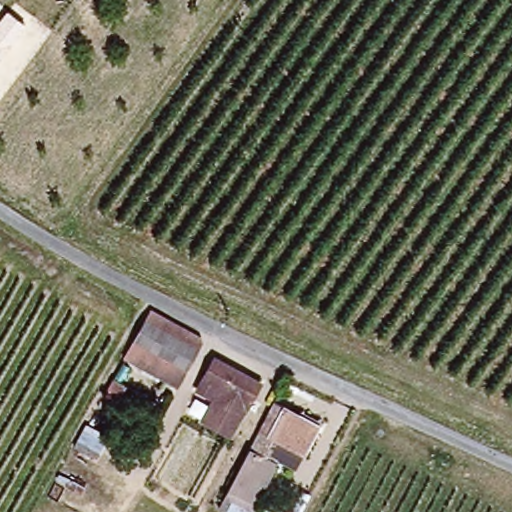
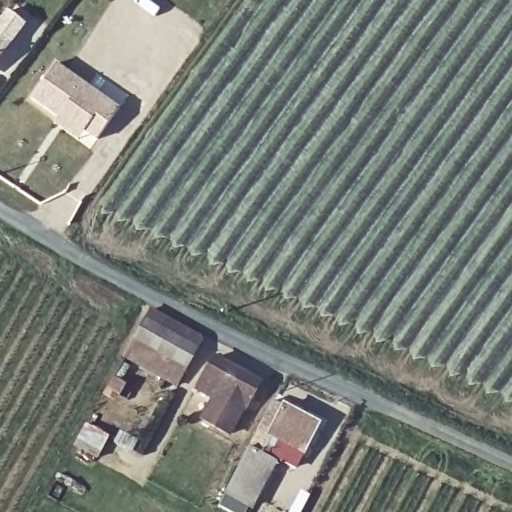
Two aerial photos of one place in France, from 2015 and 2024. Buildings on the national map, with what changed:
unchanged [(0,58),(0,19),(6,11),(25,26),(0,58)]
new [(122,107),(97,144),(84,135),(80,141),(54,124),(56,120),(29,101),(55,61),(122,107)]
unchanged [(197,337),(175,383),(122,356),(148,309),(197,337)]
unchanged [(227,437),(197,421),(210,402),(191,390),(211,353),(257,379),(227,437)]
unchanged [(315,423),(301,453),(267,434),(255,461),(243,454),(271,401),(315,423)]
unchanged [(218,501),(243,454),(255,461),(268,470),(249,512),(238,512),(218,501)]

